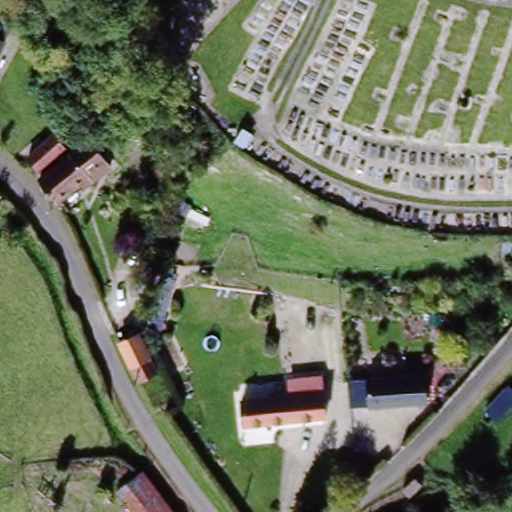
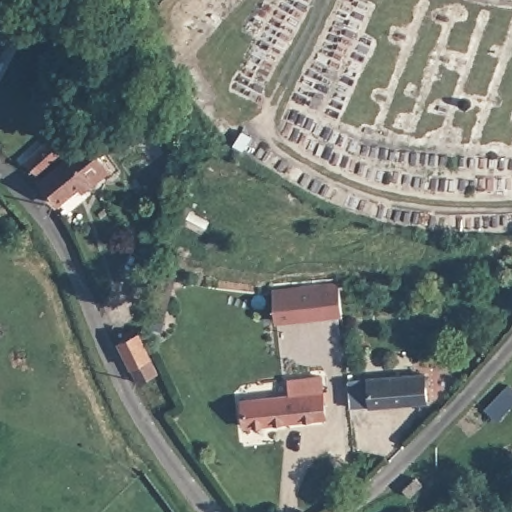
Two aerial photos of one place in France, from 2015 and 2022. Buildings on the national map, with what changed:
unchanged [(17,46),(0,65),(0,34),(17,46)]
unchanged [(65,140),(42,169),(30,159),(50,130),(65,140)]
unchanged [(63,205),(44,191),(37,186),(75,140),(98,155),(102,159),(78,195),(72,190),(63,205)]
new [(338,283),(342,318),(275,325),(272,290),(338,283)]
unchanged [(144,337),(160,375),(137,386),(121,347),(144,337)]
unchanged [(325,423),(242,429),(240,400),(290,393),(288,380),(322,377),(325,423)]
unchanged [(343,405),(344,396),(345,378),(436,380),(435,405),(343,405)]
new [(512,388),(512,410),(500,425),(483,415),(510,387),(512,388)]

